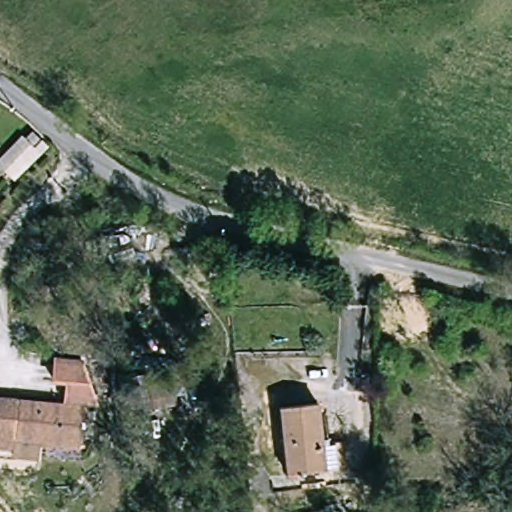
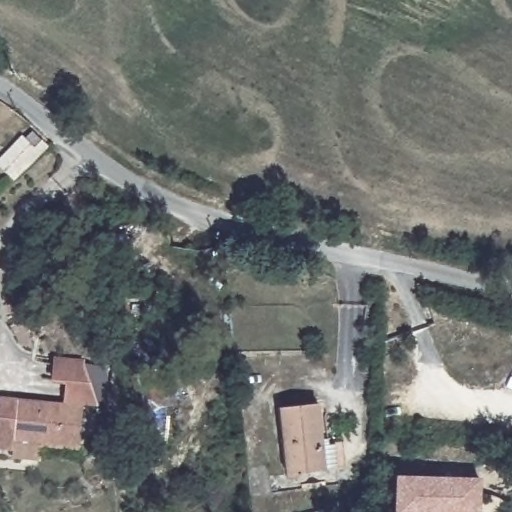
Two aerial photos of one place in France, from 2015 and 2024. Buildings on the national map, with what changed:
unchanged [(35,131),(48,146),(22,171),(9,156),(35,131)]
demolished [(152,316),(119,317),(118,288),(150,286),(152,316)]
unchanged [(3,395),(65,401),(66,384),(54,382),(60,356),(88,360),(101,407),(87,406),(80,451),(44,447),(42,463),(0,456),(0,411),(3,395)]
demolished [(197,377),(201,397),(173,402),(170,382),(197,377)]
unchanged [(345,466),(326,468),(293,473),(288,474),(279,407),(284,407),(317,402),(322,440),(341,438),(345,466)]
new [(480,475),(479,512),(425,512),(397,512),(398,475),(480,475)]
unchanged [(327,512),(315,512),(327,510),(327,512)]

